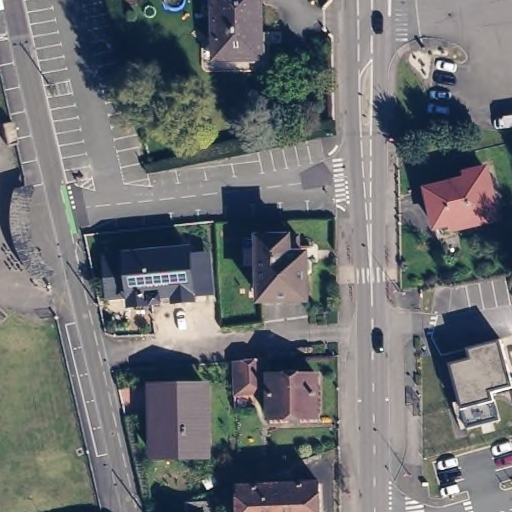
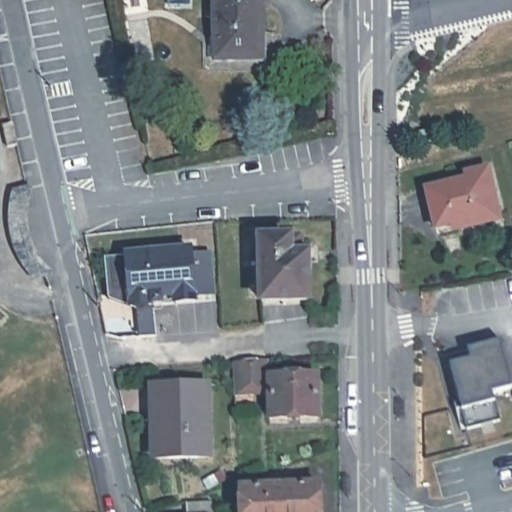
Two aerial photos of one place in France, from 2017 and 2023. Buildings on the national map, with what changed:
unchanged [(250,64),(210,65),(209,0),(256,0),(256,40),(257,64),(250,64)]
unchanged [(17,144),(7,146),(2,125),(12,122),(17,144)]
unchanged [(492,230),(455,239),(455,235),(431,240),(422,201),(460,192),(457,182),(480,177),(492,230)]
unchanged [(260,244),(290,242),(297,242),(297,260),(307,260),(307,262),(311,266),(311,277),(307,281),(308,305),(261,306),(260,244)]
unchanged [(218,295),(195,297),(197,303),(129,310),(127,296),(107,300),(102,265),(123,264),(122,253),(190,246),(192,255),(212,253),(218,295)]
unchanged [(462,410),(452,365),(472,360),(469,350),(502,342),(512,381),(512,387),(492,392),(500,420),(467,428),(462,410)]
unchanged [(268,366),(268,382),(317,381),(317,422),(270,423),(269,398),(234,400),(233,369),(268,366)]
unchanged [(152,392),(205,391),(207,461),(162,462),(154,462),(154,428),(152,392)]
unchanged [(320,512),(240,512),(240,492),(319,489),(320,512)]

